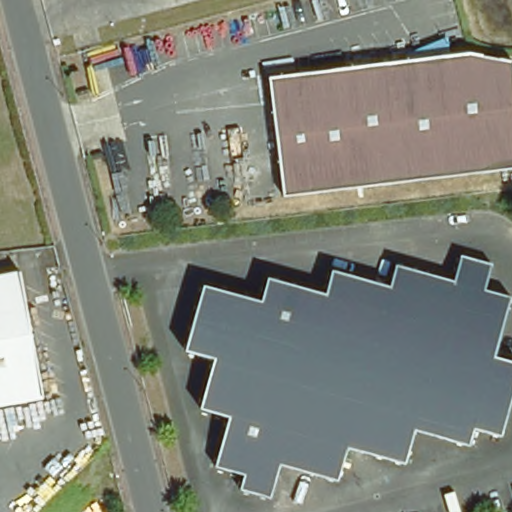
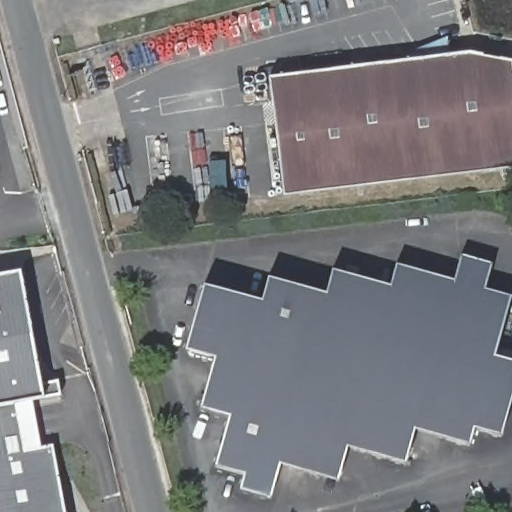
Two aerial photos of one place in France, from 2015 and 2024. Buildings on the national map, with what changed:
unchanged [(474,52),(512,62),(512,168),(290,196),(275,76),(474,52)]
unchanged [(487,292),(512,299),(512,301),(497,358),(512,362),(512,400),(502,439),(474,431),(470,449),(416,434),(406,468),(349,452),(338,483),(281,467),(271,501),(240,493),(243,477),(216,470),(228,422),(197,411),(211,361),(184,353),(203,286),(262,301),(268,280),(326,294),(333,273),(388,287),(395,268),(455,281),(461,257),(492,266),(487,292)]
unchanged [(41,385),(57,381),(60,395),(45,397),(31,399),(26,400),(0,405),(0,275),(20,272),(41,385)]
new [(0,405),(26,400),(31,399),(41,448),(53,447),(65,512),(0,512),(0,405)]

